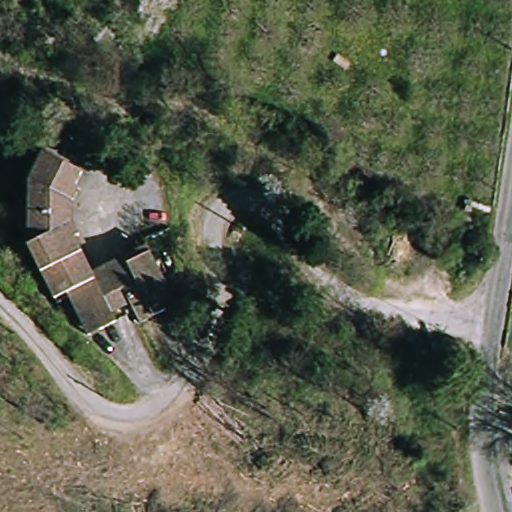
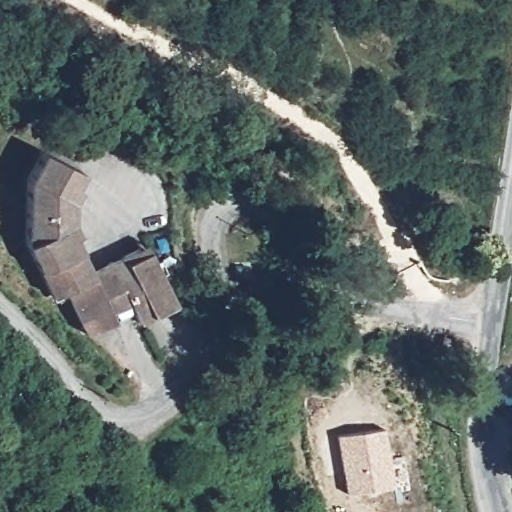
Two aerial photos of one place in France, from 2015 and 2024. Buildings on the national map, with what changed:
unchanged [(86,330),(67,287),(51,294),(27,240),(31,175),(44,149),(83,174),(82,177),(79,182),(83,185),(74,209),(71,216),(77,229),(73,234),(89,269),(111,319),(86,330)]
unchanged [(143,242),(172,302),(136,319),(108,259),(143,242)]
unchanged [(116,328),(111,319),(89,269),(108,259),(136,319),(116,328)]
new [(348,496),(337,436),(383,428),(394,488),(348,496)]

